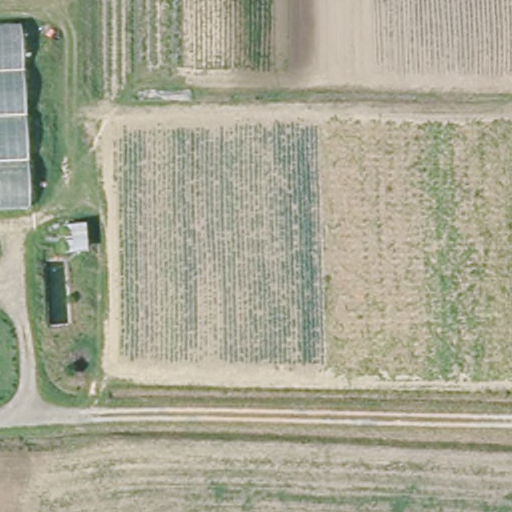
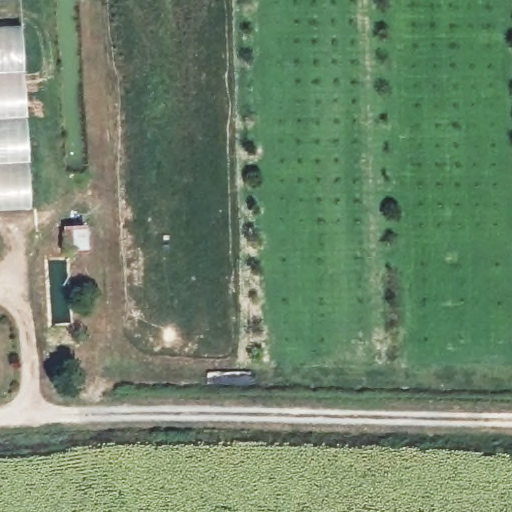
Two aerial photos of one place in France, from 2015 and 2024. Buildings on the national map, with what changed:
unchanged [(0,24),(22,23),(33,210),(0,211),(0,24)]

